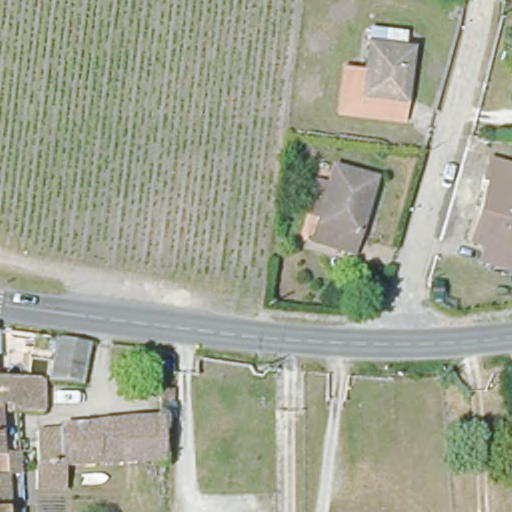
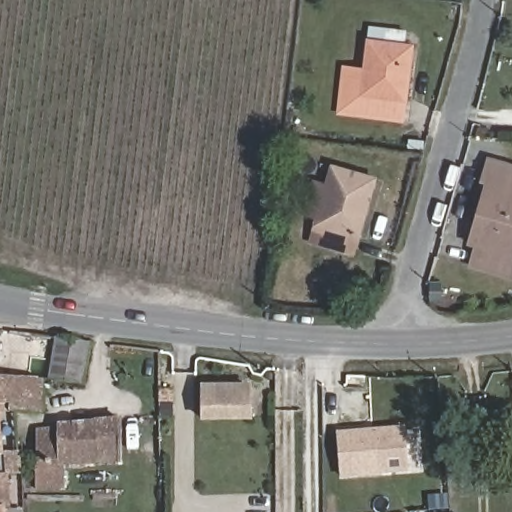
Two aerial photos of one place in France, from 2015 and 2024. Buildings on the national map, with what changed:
unchanged [(385,100),(342,94),(345,74),(347,55),(373,58),(377,19),(422,24),(412,77),(407,104),(385,100)]
unchanged [(355,253),(312,244),(333,166),(376,175),(355,253)]
unchanged [(469,262),(486,203),(480,201),(486,178),(512,184),(512,270),(511,274),(481,265),(469,262)]
unchanged [(53,381),(59,338),(90,344),(83,386),(53,381)]
unchanged [(45,419),(1,417),(1,445),(26,446),(28,467),(19,466),(0,467),(0,381),(52,387),(45,419)]
new [(253,421),(203,422),(201,385),(253,384),(253,421)]
unchanged [(138,459),(66,466),(67,489),(38,491),(38,456),(38,436),(54,434),(56,423),(162,419),(162,456),(138,459)]
new [(406,427),(409,473),(341,478),(336,432),(406,427)]
unchanged [(22,505),(11,504),(11,512),(0,512),(0,467),(19,466),(22,505)]

